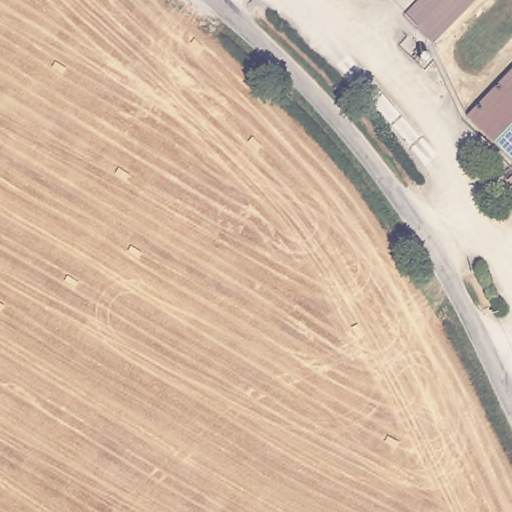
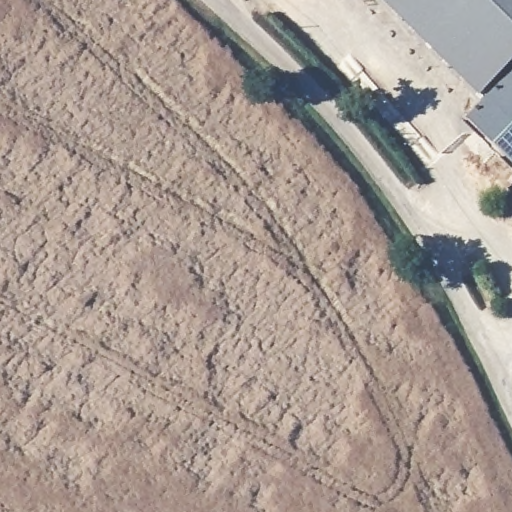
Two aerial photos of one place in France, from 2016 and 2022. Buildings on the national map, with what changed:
new [(384,0),(512,0),(512,65),(482,97),(384,0)]
demolished [(419,0),(447,0),(418,28),(404,15),(419,0)]
unchanged [(512,87),(512,167),(474,122),(512,87)]

